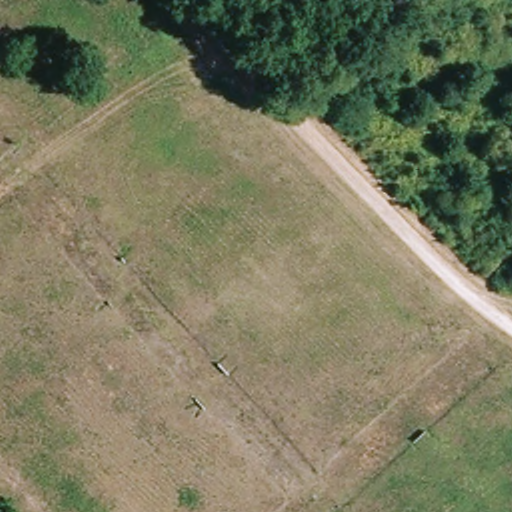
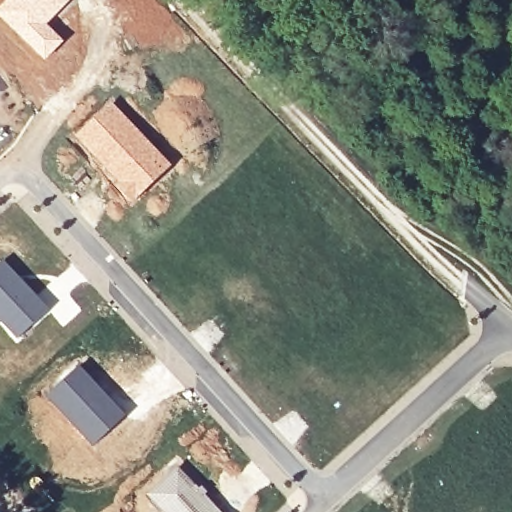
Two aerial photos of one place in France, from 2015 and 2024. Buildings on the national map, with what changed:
new [(47,25),(63,41),(44,60),(0,18),(0,6),(6,0),(70,0),(47,25)]
new [(110,100),(171,165),(131,203),(73,137),(110,100)]
new [(51,307),(17,338),(0,320),(0,261),(3,258),(51,307)]
new [(79,363),(125,415),(92,445),(45,395),(79,363)]
new [(223,512),(159,512),(160,511),(145,495),(178,465),(223,512)]

